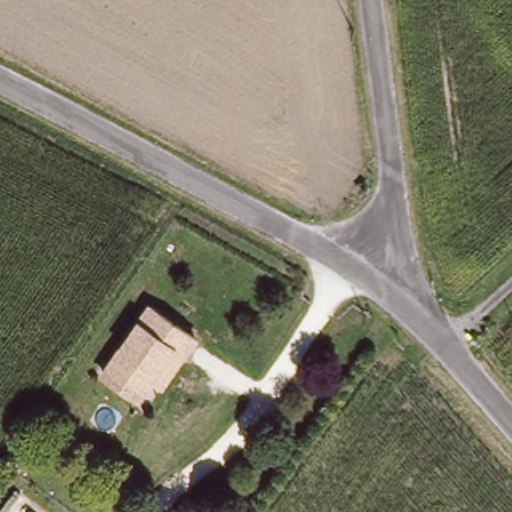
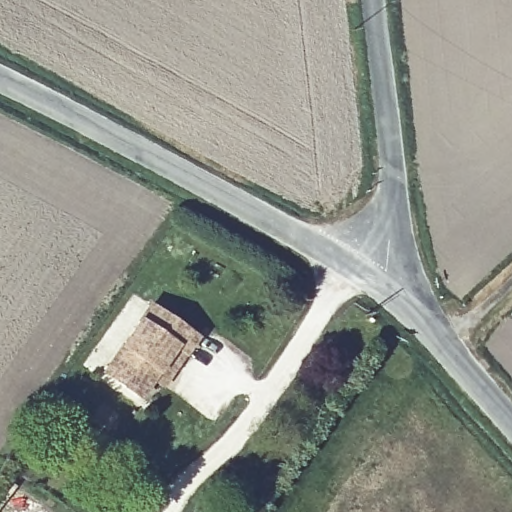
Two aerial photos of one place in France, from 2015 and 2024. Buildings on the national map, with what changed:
unchanged [(148,378),(136,395),(102,371),(150,303),(195,335),(183,352),(160,386),(148,378)]
unchanged [(211,512),(180,512),(192,495),(213,510),(211,512)]

